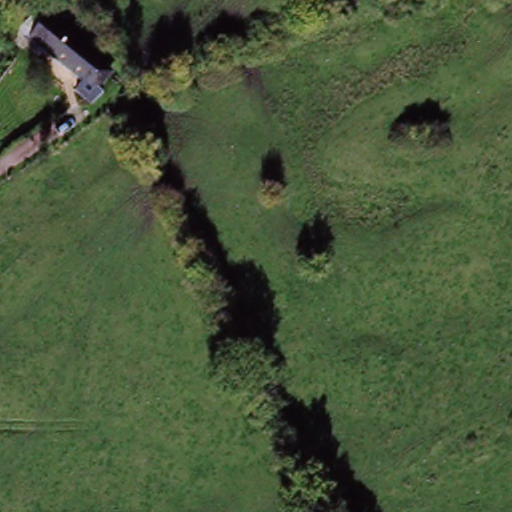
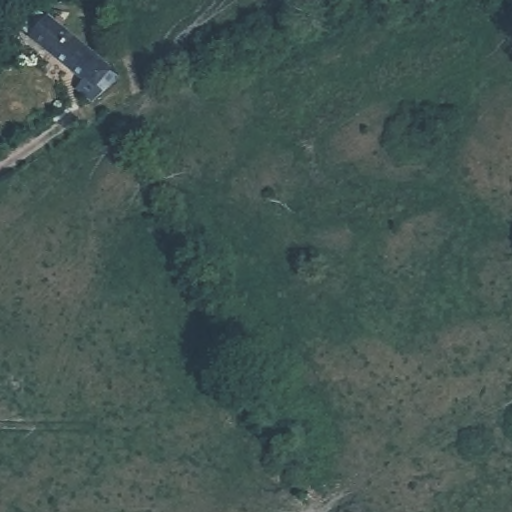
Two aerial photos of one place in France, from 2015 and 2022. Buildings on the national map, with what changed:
unchanged [(90,105),(77,95),(85,86),(31,40),(46,22),(113,77),(90,105)]

